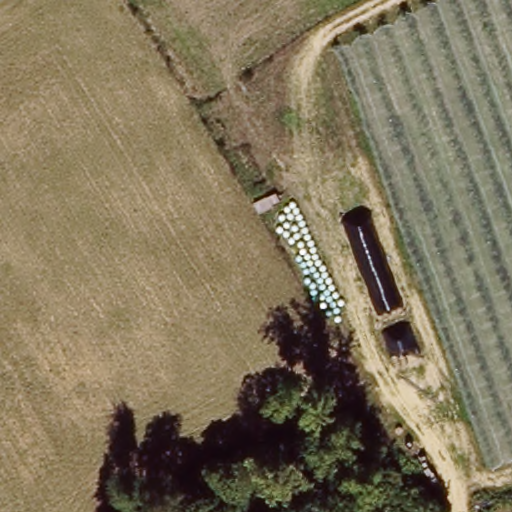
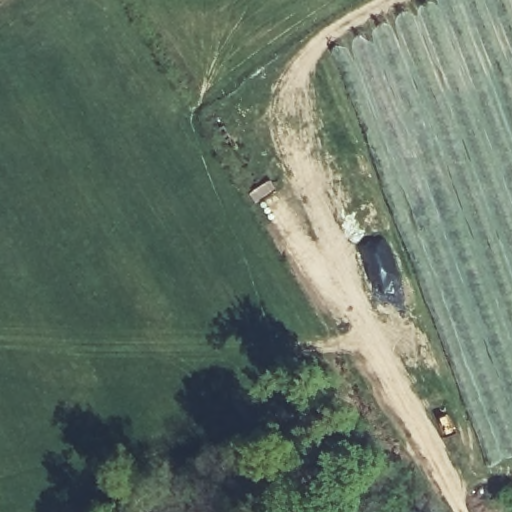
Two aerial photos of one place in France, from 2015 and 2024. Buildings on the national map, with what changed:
[]

